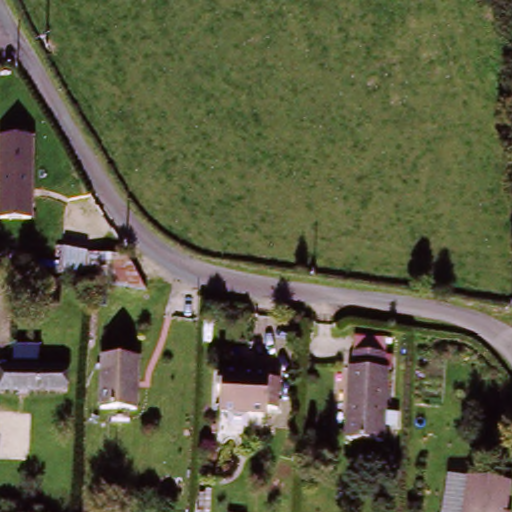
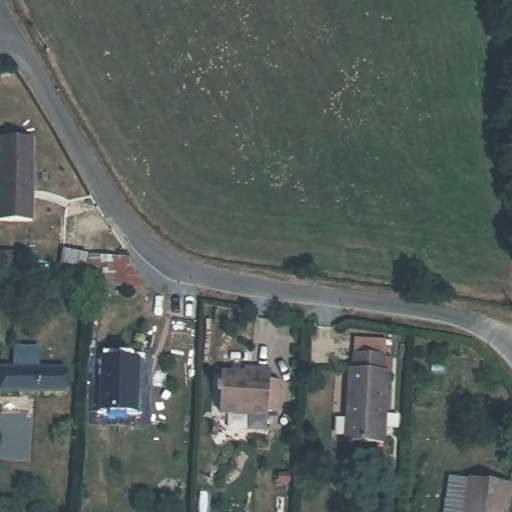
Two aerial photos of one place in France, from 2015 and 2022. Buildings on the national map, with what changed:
unchanged [(14,136),(45,137),(41,218),(10,217),(14,136)]
unchanged [(107,287),(57,282),(64,254),(89,257),(127,258),(141,295),(107,287)]
unchanged [(351,358),(384,359),(383,378),(386,378),(385,449),(346,450),(347,377),(350,377),(351,358)]
unchanged [(136,417),(101,415),(104,360),(139,362),(136,417)]
unchanged [(270,370),(270,382),(282,383),(279,416),(267,415),(267,420),(221,418),(222,375),(250,377),(252,368),(270,370)]
unchanged [(8,370),(69,370),(68,392),(8,392),(8,370)]
unchanged [(463,475),(505,481),(500,512),(457,512),(463,475)]

